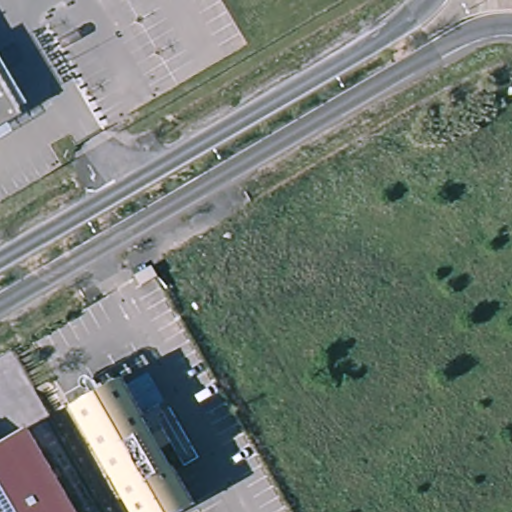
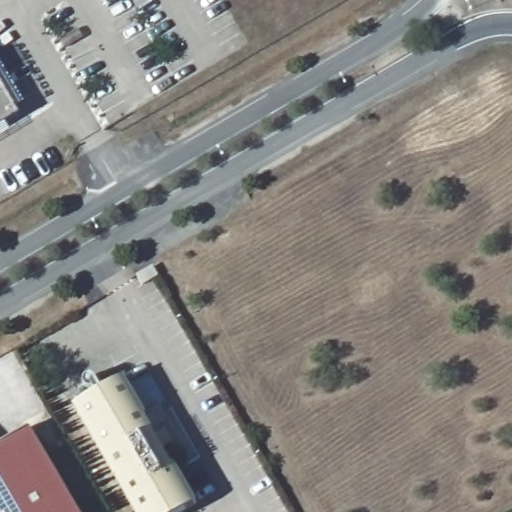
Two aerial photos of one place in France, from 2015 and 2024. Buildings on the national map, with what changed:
unchanged [(0,123),(0,78),(20,111),(0,123)]
unchanged [(181,512),(137,512),(73,404),(125,375),(197,502),(181,512)]
unchanged [(30,423),(80,512),(0,512),(0,439),(30,423)]

